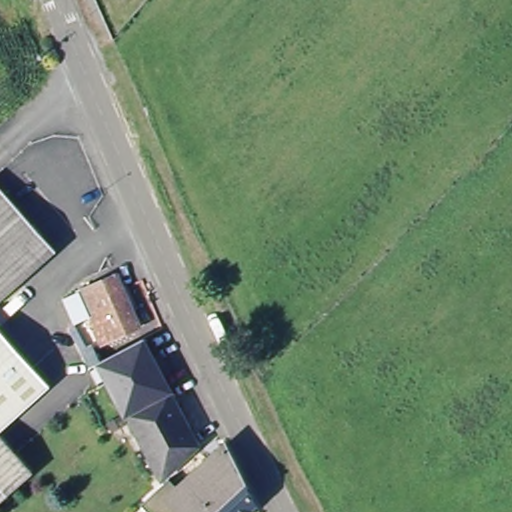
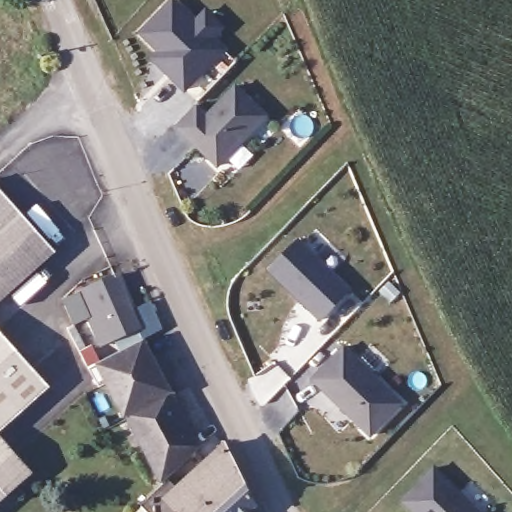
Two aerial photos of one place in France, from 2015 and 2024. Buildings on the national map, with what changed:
new [(139,28),(166,0),(175,0),(194,17),(204,6),(220,22),(210,32),(223,44),(184,85),(170,71),(152,54),(158,47),(139,28)]
new [(194,101),(205,112),(235,81),(266,110),(218,161),(175,120),(194,101)]
unchanged [(53,245),(0,293),(0,188),(53,245)]
new [(295,238),(347,288),(318,318),(266,268),(295,238)]
unchanged [(77,297),(119,277),(144,332),(120,343),(107,315),(89,323),(77,297)]
unchanged [(51,387),(1,434),(0,433),(0,327),(51,387)]
unchanged [(175,391),(130,415),(113,376),(116,373),(111,364),(108,359),(107,357),(150,336),(162,361),(175,391)]
new [(341,343),(400,399),(369,431),(311,376),(341,343)]
unchanged [(130,415),(175,391),(203,448),(165,485),(130,415)]
unchanged [(0,489),(0,433),(1,434),(12,446),(28,461),(0,489)]
unchanged [(226,436),(259,498),(244,512),(155,512),(205,463),(226,436)]
new [(414,512),(401,500),(434,466),(482,512),(414,512)]

